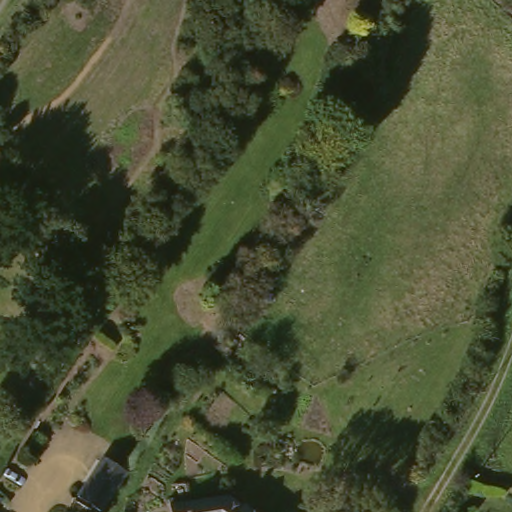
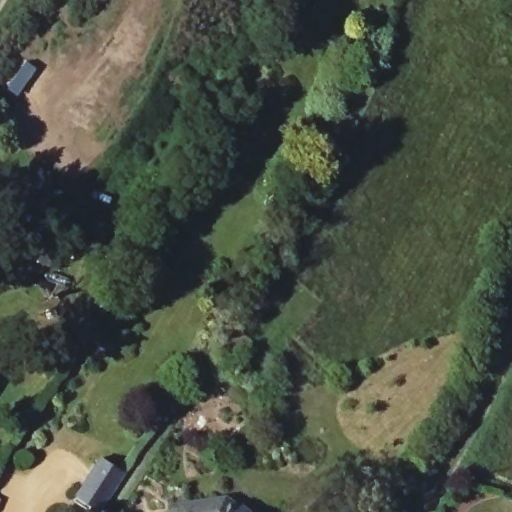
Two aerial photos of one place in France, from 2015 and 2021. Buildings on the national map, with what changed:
unchanged [(105,512),(99,512),(81,500),(107,460),(130,475),(105,512)]
unchanged [(253,512),(166,512),(165,508),(230,499),(253,512)]

